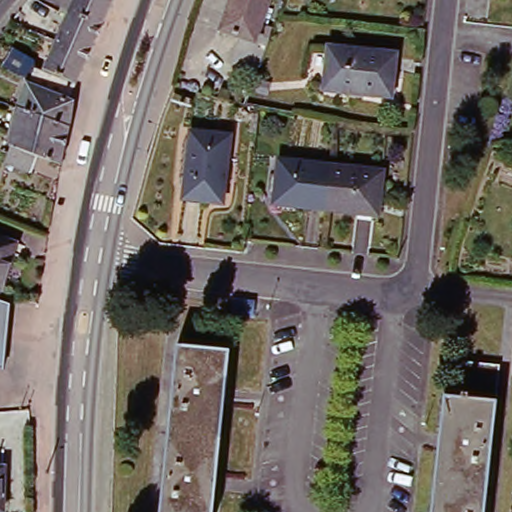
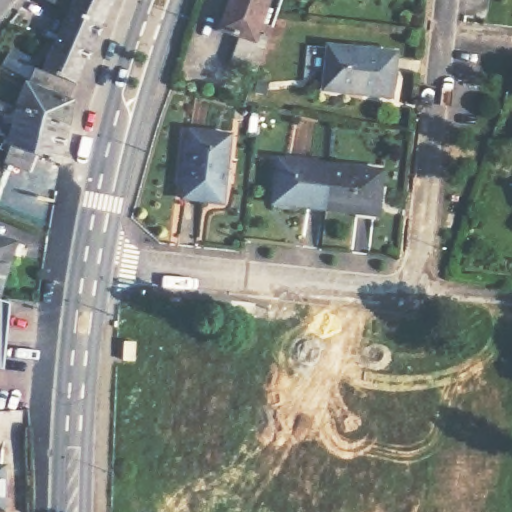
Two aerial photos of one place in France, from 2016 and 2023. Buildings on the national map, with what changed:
unchanged [(93,50),(60,35),(72,8),(63,4),(65,0),(114,0),(105,21),(96,42),(93,50)]
unchanged [(257,41),(267,46),(256,72),(230,62),(241,35),(223,28),(234,0),(273,0),(257,41)]
unchanged [(46,64),(59,36),(60,35),(93,50),(80,79),(46,64)]
unchanged [(400,55),(395,96),(330,87),(335,47),(400,55)]
unchanged [(22,97),(32,77),(30,75),(6,62),(13,48),(39,60),(37,62),(79,80),(78,83),(73,95),(80,97),(73,122),(20,102),(22,97)]
unchanged [(68,138),(63,157),(40,148),(32,165),(7,154),(15,138),(11,136),(12,132),(20,102),(73,122),(68,138)]
unchanged [(235,134),(229,173),(225,200),(186,194),(195,129),(235,134)]
unchanged [(280,203),(286,158),(341,165),(335,210),(280,203)]
unchanged [(341,165),(391,171),(385,216),(335,210),(341,165)]
unchanged [(12,241),(10,250),(0,280),(0,237),(12,241)]
unchanged [(10,295),(1,372),(0,371),(0,292),(10,295)]
demolished [(216,512),(157,512),(177,344),(235,352),(216,512)]
demolished [(485,512),(433,512),(446,395),(461,397),(465,360),(501,365),(485,512)]
unchanged [(3,464),(5,464),(3,509),(0,509),(0,463),(3,464)]

